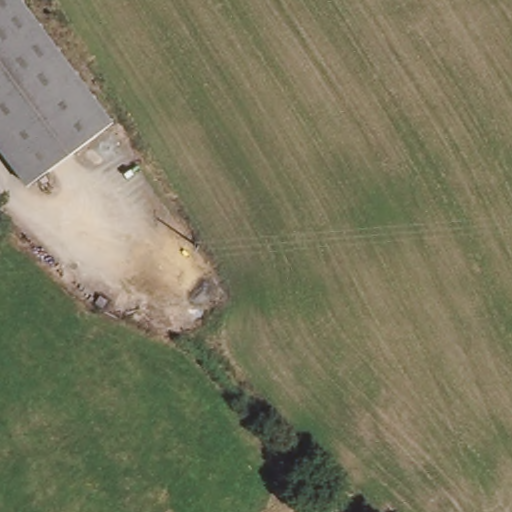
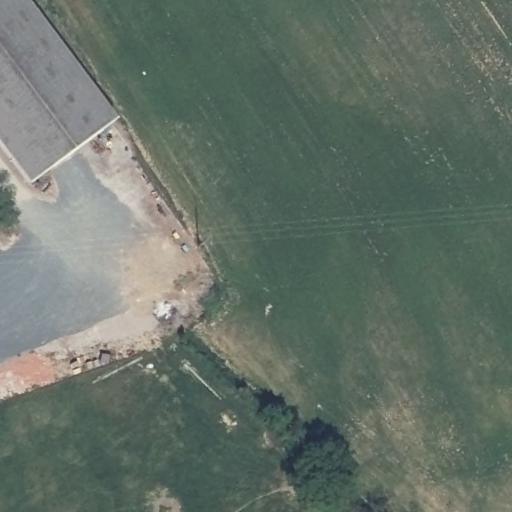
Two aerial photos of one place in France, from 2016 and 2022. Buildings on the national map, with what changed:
unchanged [(19,0),(106,115),(29,190),(0,153),(0,0),(19,0)]

